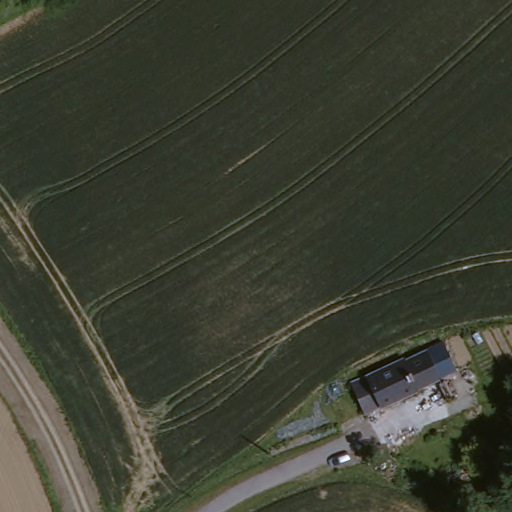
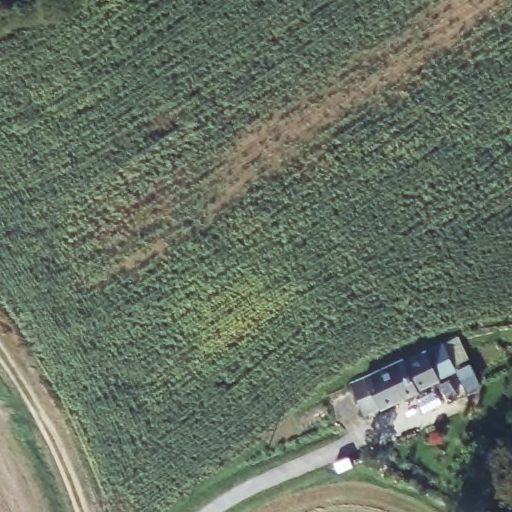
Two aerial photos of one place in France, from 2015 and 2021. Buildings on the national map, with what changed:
unchanged [(404,358),(405,360),(424,351),(438,380),(363,416),(348,385),(404,358)]

